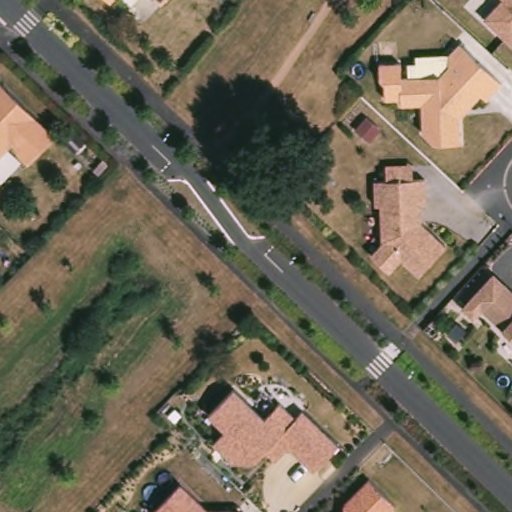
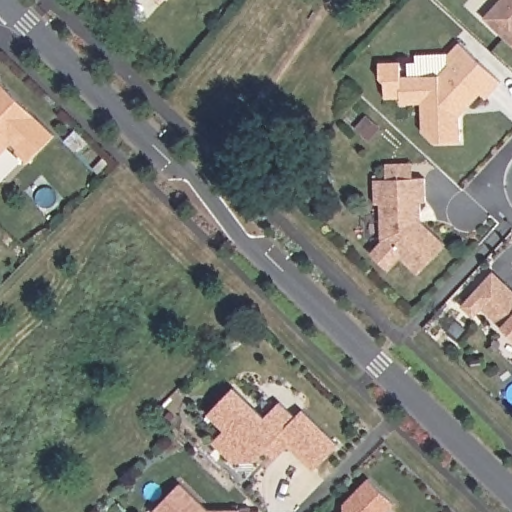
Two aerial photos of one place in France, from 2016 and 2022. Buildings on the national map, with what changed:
unchanged [(104,0),(107,0),(105,1),(104,0)]
unchanged [(153,0),(160,0),(157,3),(153,0)]
unchanged [(478,19),(496,0),(512,0),(512,49),(478,19)]
unchanged [(455,143),(430,144),(418,133),(417,104),(396,105),(395,78),(435,76),(444,66),(443,56),(455,44),(496,83),(481,100),(475,94),(455,117),(455,143)]
unchanged [(11,154),(11,150),(6,145),(0,151),(0,90),(49,137),(22,165),(11,154)]
unchanged [(412,275),(395,259),(383,272),(364,254),(376,242),(375,241),(375,204),(370,204),(370,180),(420,179),(420,203),(415,203),(415,213),(416,223),(440,245),(412,275)]
unchanged [(476,310),(468,319),(456,307),(487,274),(499,285),(500,284),(512,296),(512,342),(476,310)]
unchanged [(260,450),(250,462),(228,462),(208,443),(220,430),(204,414),(229,388),(260,418),(275,403),(290,418),(297,411),(333,446),(308,471),(283,447),(280,450),(270,460),(260,450)]
unchanged [(344,505),(369,479),(395,505),(388,512),(344,512),(344,505)]
unchanged [(180,484),(208,511),(240,511),(240,512),(153,512),(180,484)]

